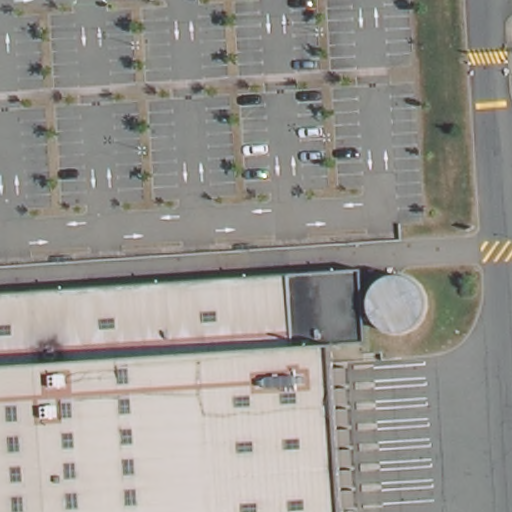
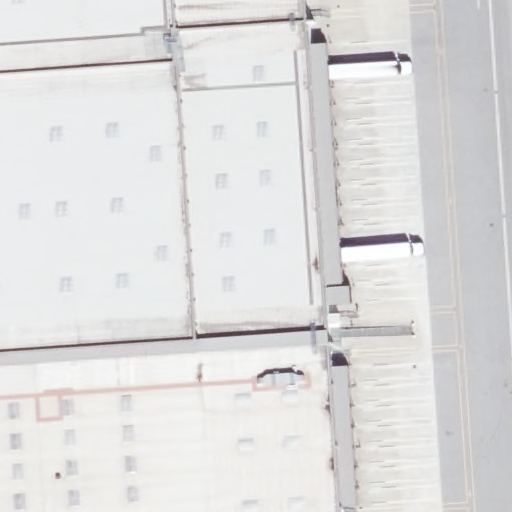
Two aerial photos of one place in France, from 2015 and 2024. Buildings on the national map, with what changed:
new [(0,281),(0,0),(306,0),(331,260),(0,281)]
unchanged [(345,342),(357,512),(0,512),(0,288),(357,264),(365,340),(345,342)]
demolished [(368,285),(379,275),(390,271),(403,272),(412,279),(422,301),(418,312),(407,324),(396,328),(384,327),(371,319),(364,299),(368,285)]

